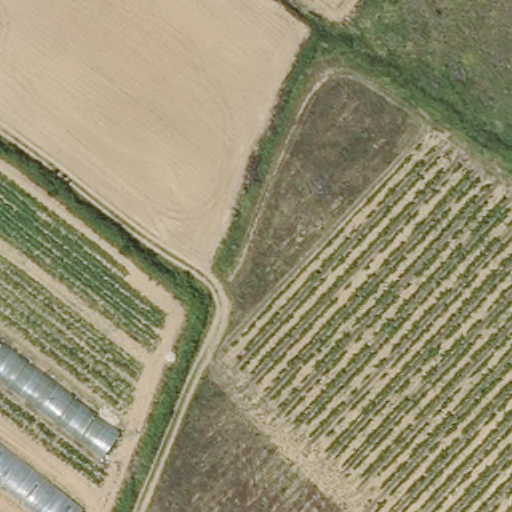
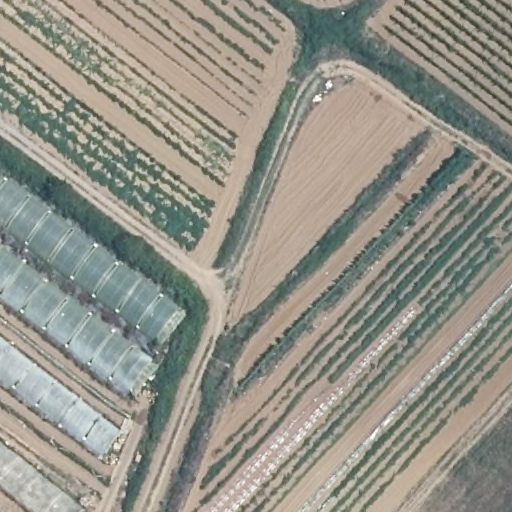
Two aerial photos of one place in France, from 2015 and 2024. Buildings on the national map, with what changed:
new [(180,309),(156,344),(0,228),(0,175),(180,309)]
new [(155,363),(130,395),(0,298),(0,246),(155,363)]
unchanged [(105,456),(0,375),(0,341),(120,433),(105,456)]
unchanged [(85,510),(83,512),(40,512),(0,481),(0,442),(85,510)]

